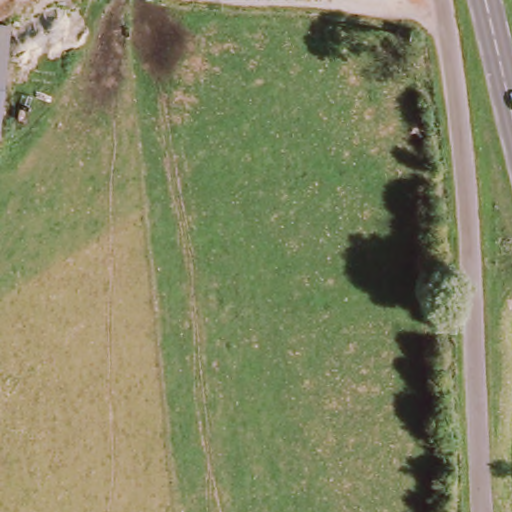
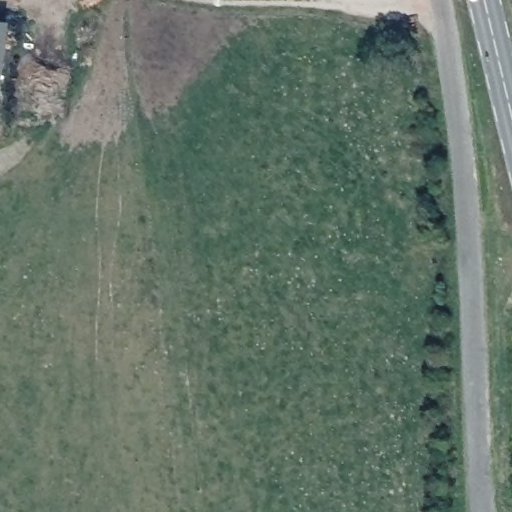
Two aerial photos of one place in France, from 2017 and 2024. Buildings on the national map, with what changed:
unchanged [(0,79),(0,23),(5,24),(0,79)]

